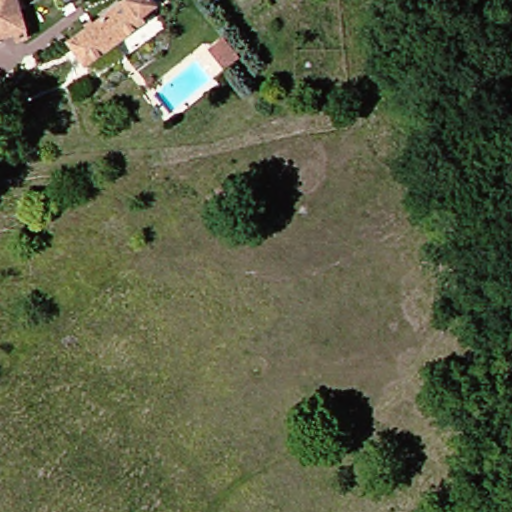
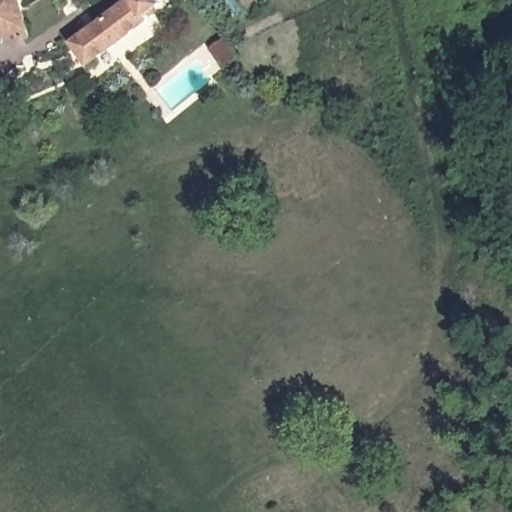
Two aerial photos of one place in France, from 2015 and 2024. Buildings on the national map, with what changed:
unchanged [(25,36),(3,41),(2,34),(0,34),(0,0),(17,0),(25,36)]
unchanged [(121,0),(148,0),(152,7),(139,16),(142,21),(82,62),(65,39),(121,0)]

